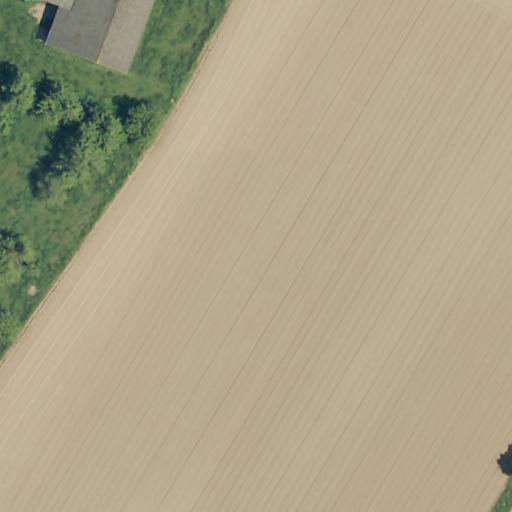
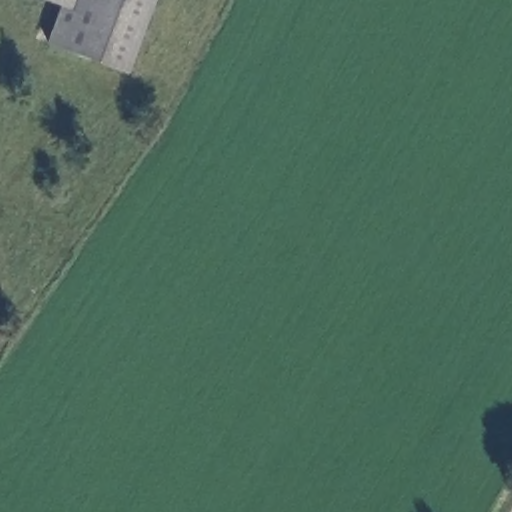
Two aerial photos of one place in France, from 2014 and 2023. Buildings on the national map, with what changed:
unchanged [(131,67),(54,41),(64,3),(56,0),(153,0),(131,67)]

